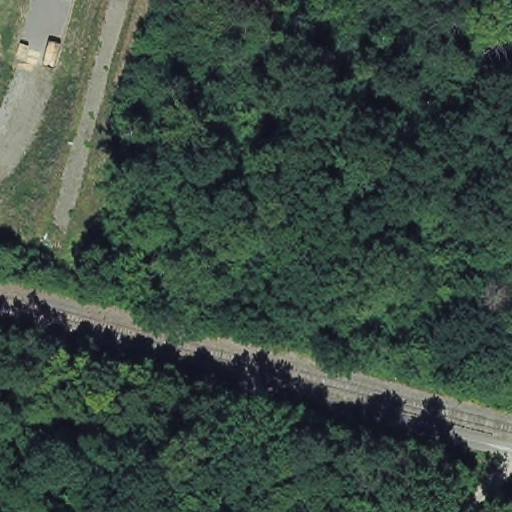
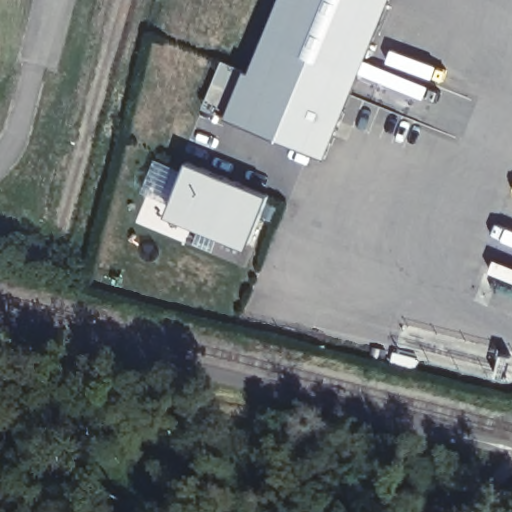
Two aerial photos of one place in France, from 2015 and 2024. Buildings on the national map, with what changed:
new [(326,155),(204,107),(226,58),(250,69),(278,0),(390,0),(326,155)]
new [(246,249),(167,216),(190,161),(271,194),(246,249)]

